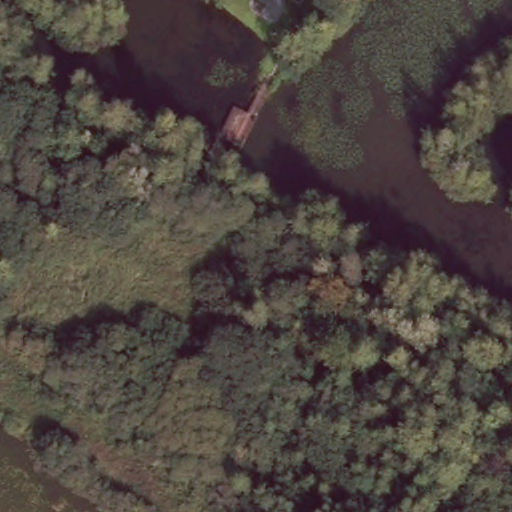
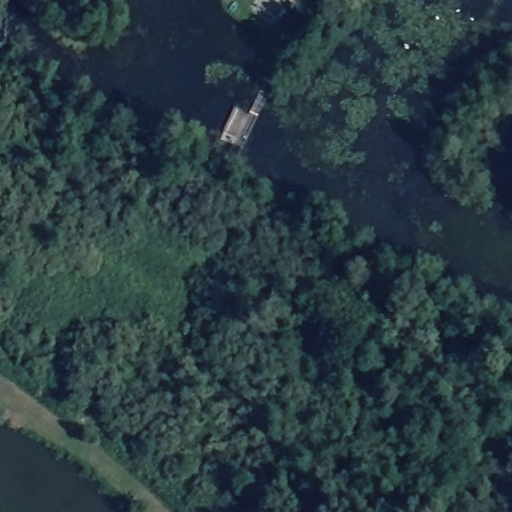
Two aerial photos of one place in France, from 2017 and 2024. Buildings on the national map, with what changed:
unchanged [(300,0),(303,0),(302,1),(300,0)]

